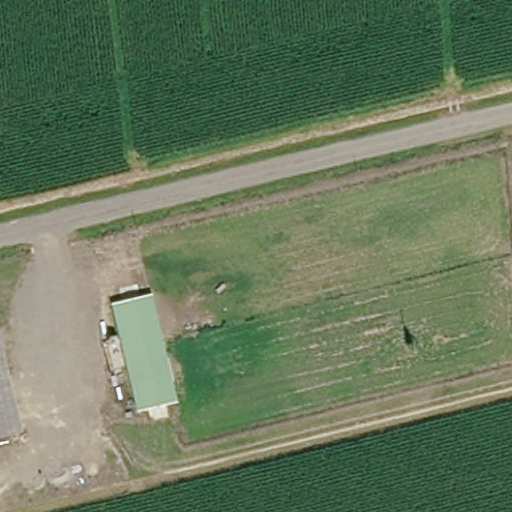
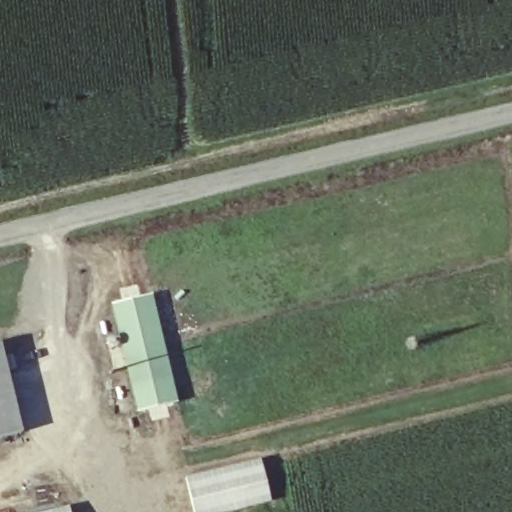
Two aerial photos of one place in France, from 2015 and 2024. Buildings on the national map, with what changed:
unchanged [(113,305),(153,295),(177,401),(138,410),(113,305)]
unchanged [(0,438),(0,344),(23,432),(0,438)]
new [(271,502),(229,512),(195,512),(186,477),(260,459),(271,502)]
new [(70,512),(44,512),(69,506),(70,512)]

